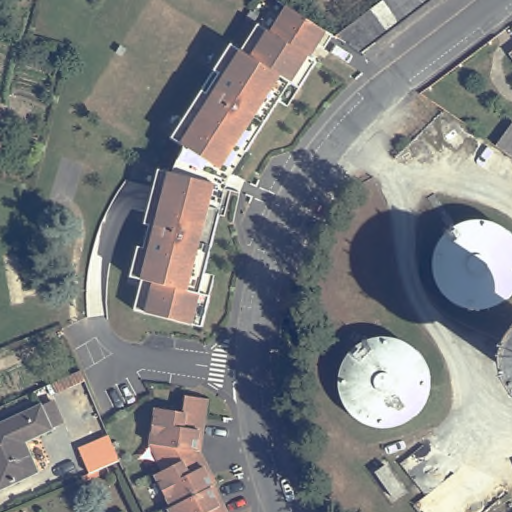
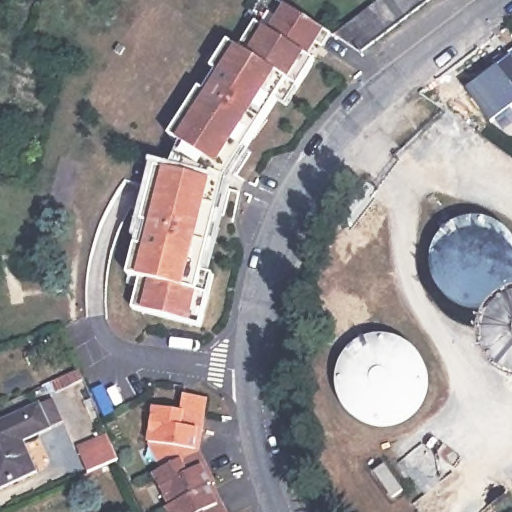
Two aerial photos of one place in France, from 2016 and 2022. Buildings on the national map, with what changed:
unchanged [(445,0),(442,2),(430,11),(418,20),(406,29),(395,38),(382,47),(366,59),(350,48),(339,41),(364,22),(376,13),(388,5),(394,0),(445,0)]
unchanged [(148,287),(136,284),(144,253),(149,255),(155,232),(150,231),(164,176),(195,184),(202,161),(175,144),(205,96),(210,99),(222,79),(217,76),(235,50),(245,56),(262,30),(275,39),(292,11),(339,41),(330,55),(322,51),(314,63),(321,67),(305,95),(293,112),(285,107),(252,158),(256,161),(241,185),(230,178),(225,175),(219,190),(225,191),(237,194),(230,222),(225,221),(211,277),(221,280),(216,302),(209,333),(140,317),(148,287)]
new [(512,107),(490,123),(468,93),(499,70),(497,67),(510,57),(512,59),(512,107)]
unchanged [(16,132),(42,142),(35,162),(10,152),(0,152),(0,130),(16,132)]
unchanged [(512,137),(512,158),(502,151),(512,137)]
unchanged [(56,401),(52,391),(80,378),(84,388),(56,401)]
unchanged [(171,507),(174,505),(156,473),(165,468),(151,443),(155,407),(185,411),(187,394),(207,397),(205,413),(199,450),(217,481),(215,482),(231,512),(174,512),(171,507)]
unchanged [(66,430),(29,447),(41,477),(0,496),(0,430),(55,405),(66,430)]
unchanged [(75,457),(74,452),(103,440),(105,444),(106,447),(114,463),(84,477),(75,457)]

